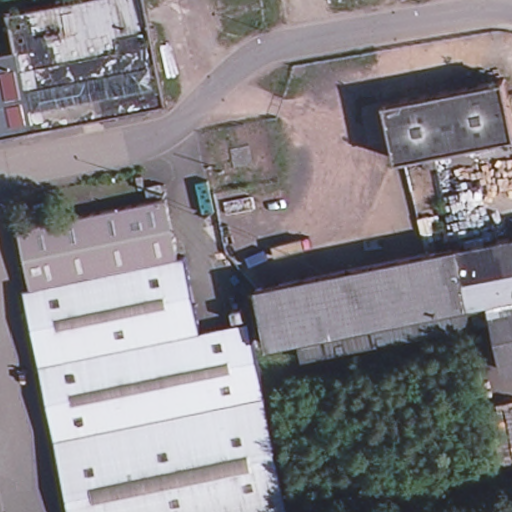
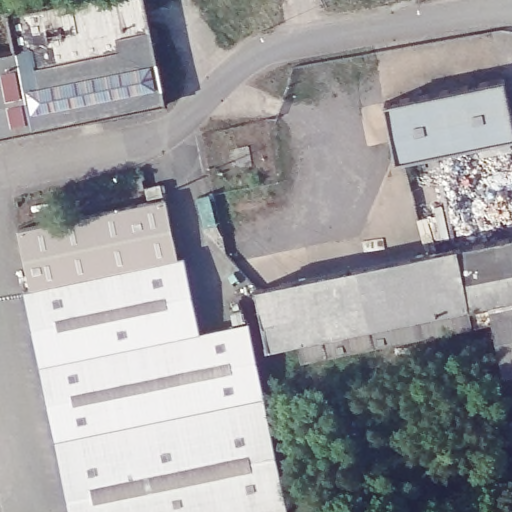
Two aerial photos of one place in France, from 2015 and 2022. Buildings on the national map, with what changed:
unchanged [(11,15),(82,0),(148,0),(168,103),(0,138),(0,54),(17,51),(11,15)]
unchanged [(401,157),(389,102),(507,79),(512,102),(512,137),(441,150),(438,151),(435,151),(401,157)]
unchanged [(216,195),(207,134),(268,120),(282,181),(216,195)]
unchanged [(157,191),(158,194),(145,196),(143,187),(159,184),(161,190),(157,191)]
unchanged [(17,230),(162,199),(175,257),(29,287),(17,230)]
unchanged [(498,314),(480,317),(476,318),(460,242),(512,233),(512,367),(509,368),(498,314)]
unchanged [(312,352),(308,331),(270,339),(259,283),(456,244),(458,243),(460,242),(476,318),(312,352)]
unchanged [(21,290),(29,287),(175,257),(181,256),(198,333),(36,366),(21,290)]
unchanged [(246,324),(261,393),(50,438),(36,366),(198,333),(246,324)]
unchanged [(58,480),(58,477),(50,438),(261,393),(269,433),(269,437),(284,512),(65,512),(58,480)]

